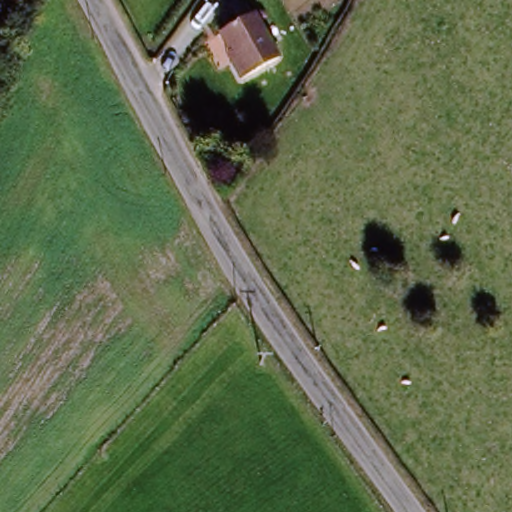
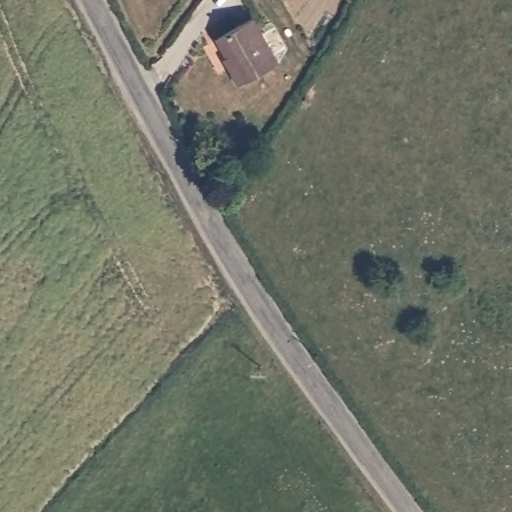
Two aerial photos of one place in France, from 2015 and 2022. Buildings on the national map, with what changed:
unchanged [(254,20),(277,65),(238,85),(216,39),(254,20)]

